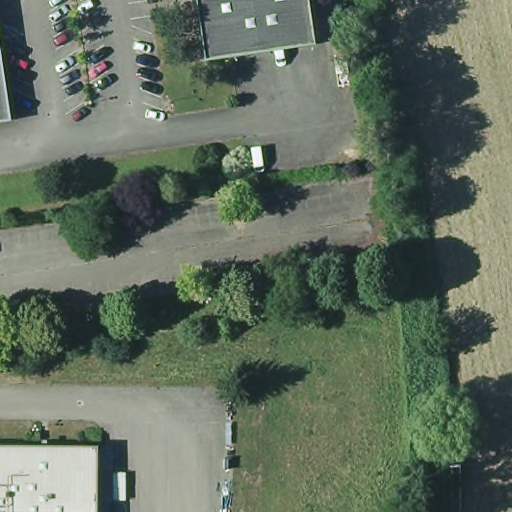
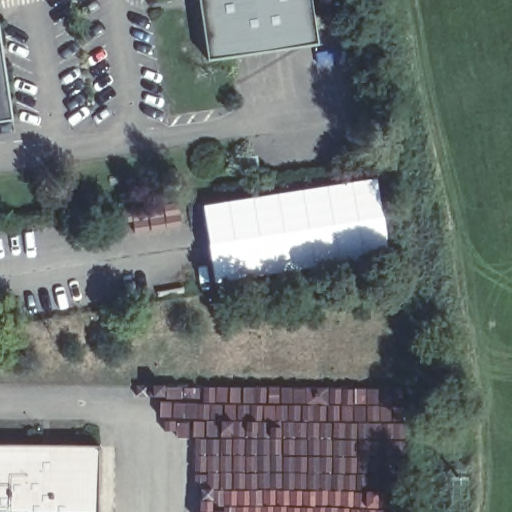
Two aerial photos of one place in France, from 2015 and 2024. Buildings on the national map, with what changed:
unchanged [(201,0),(315,0),(323,46),(209,59),(201,0)]
unchanged [(0,119),(0,11),(15,117),(0,119)]
new [(376,177),(387,250),(286,271),(214,282),(201,204),(376,177)]
unchanged [(103,512),(0,512),(0,445),(104,446),(103,512)]

